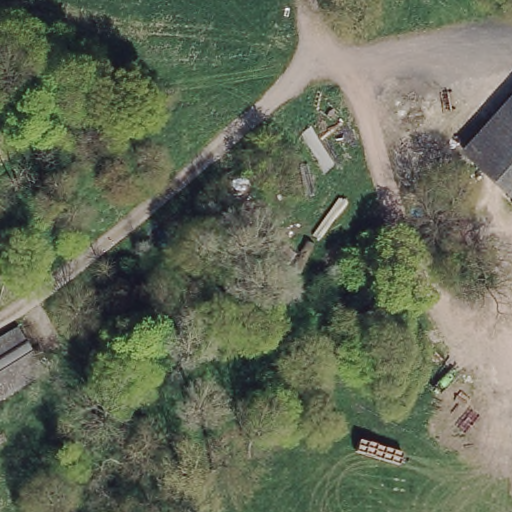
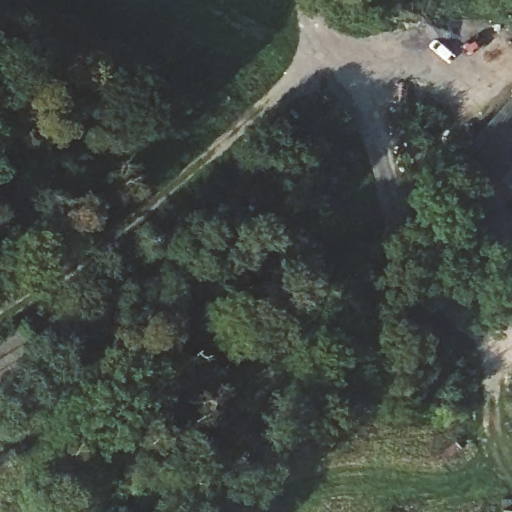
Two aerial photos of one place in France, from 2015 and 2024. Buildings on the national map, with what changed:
unchanged [(512,123),(512,198),(475,166),(512,123)]
unchanged [(45,368),(0,394),(0,330),(17,320),(45,368)]

